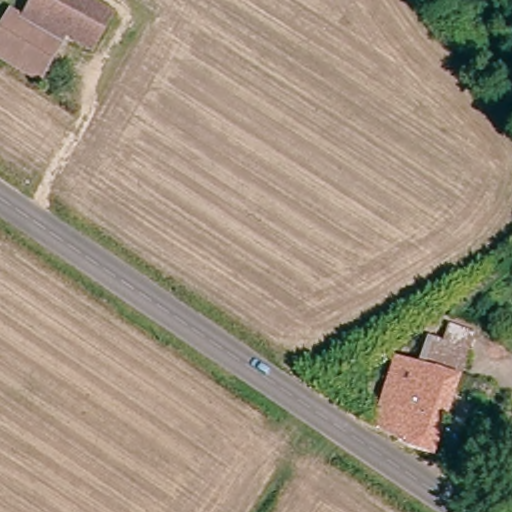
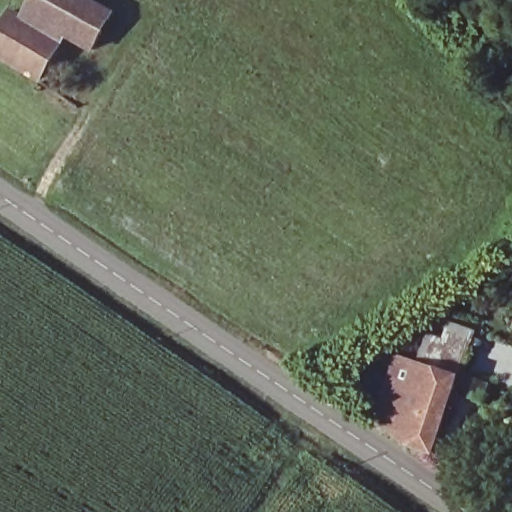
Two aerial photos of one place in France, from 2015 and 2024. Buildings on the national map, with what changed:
unchanged [(20,14),(28,19),(40,0),(88,0),(118,18),(97,53),(69,37),(43,80),(0,55),(0,47),(20,14)]
unchanged [(440,451),(416,445),(380,421),(397,354),(417,360),(424,330),(442,335),(446,317),(471,323),(467,340),(462,358),(459,372),(440,451)]

